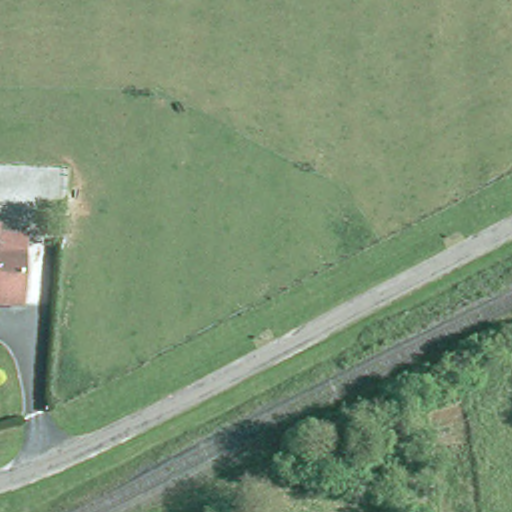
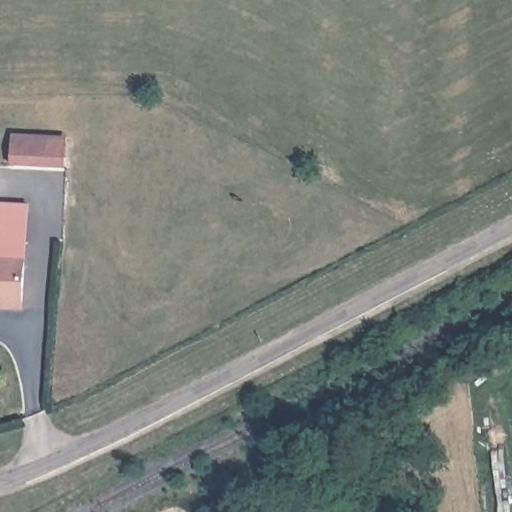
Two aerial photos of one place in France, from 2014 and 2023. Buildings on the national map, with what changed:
new [(11,133),(66,137),(65,168),(10,164),(11,133)]
new [(30,204),(28,258),(0,255),(0,251),(0,203),(30,204)]
unchanged [(0,251),(0,255),(28,258),(25,311),(0,310),(0,251)]

